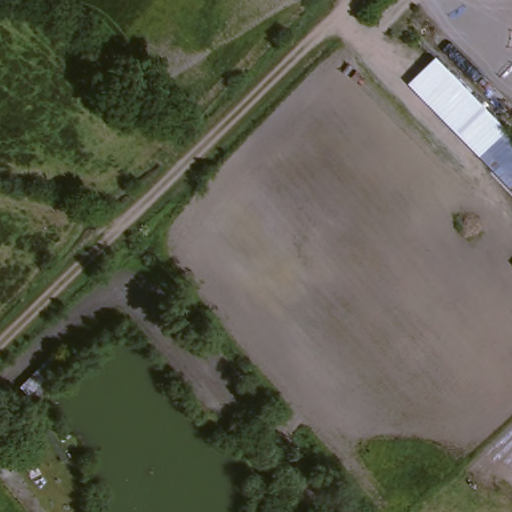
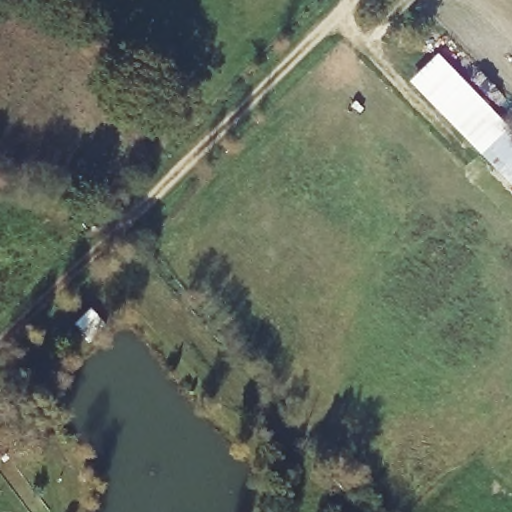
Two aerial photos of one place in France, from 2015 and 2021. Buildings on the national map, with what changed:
unchanged [(438,55),(510,131),(481,156),(410,83),(438,55)]
unchanged [(512,133),(512,188),(481,156),(510,131),(512,133)]

